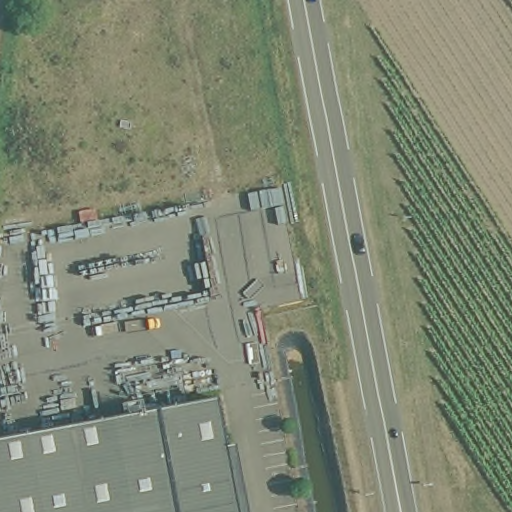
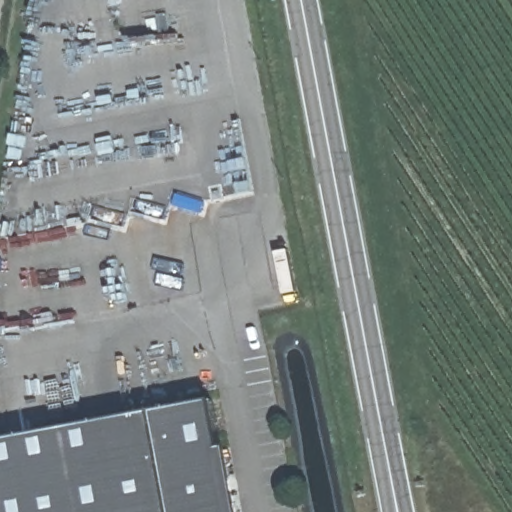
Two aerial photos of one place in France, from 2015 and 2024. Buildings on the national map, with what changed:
unchanged [(213,400),(234,512),(0,512),(0,439),(80,425),(213,400)]

